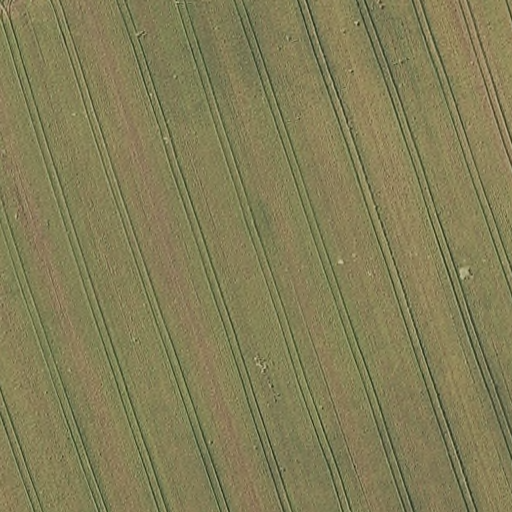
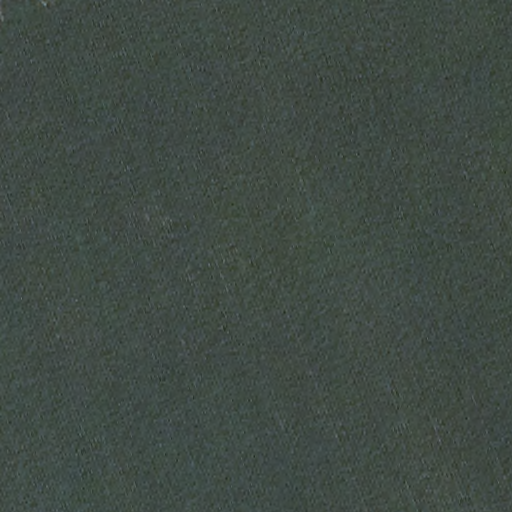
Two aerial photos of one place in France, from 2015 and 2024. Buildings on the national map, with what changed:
[]

